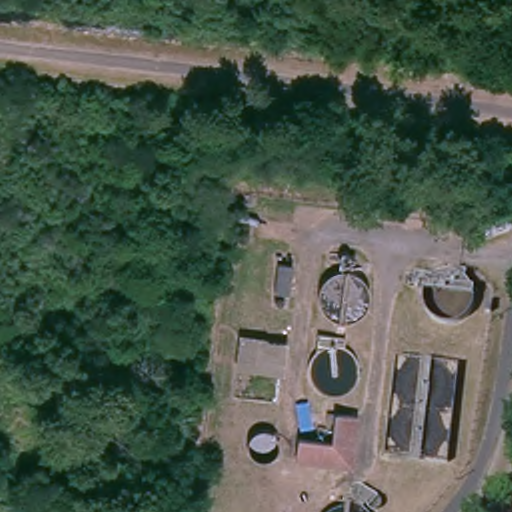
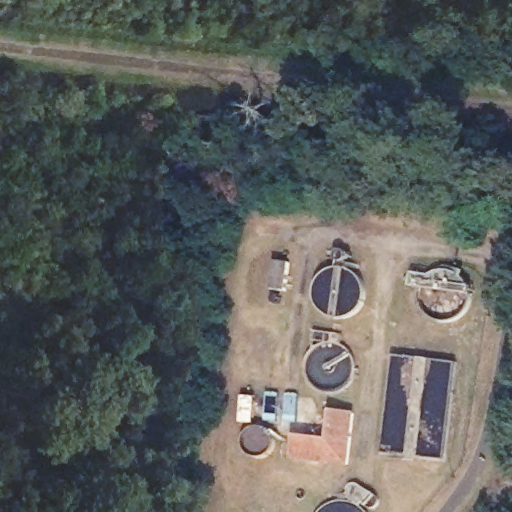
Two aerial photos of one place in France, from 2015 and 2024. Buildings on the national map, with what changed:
unchanged [(275,257),(295,261),(291,297),(270,295),(275,257)]
unchanged [(336,407),(359,412),(354,467),(295,459),(299,438),(332,442),(336,407)]

